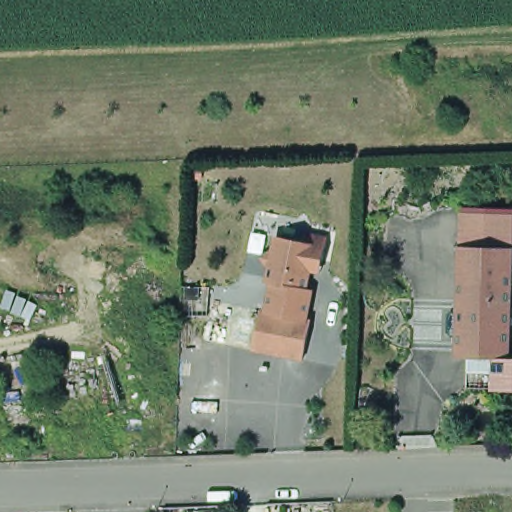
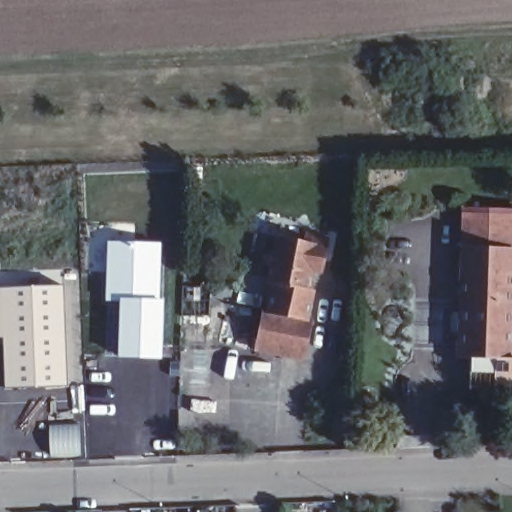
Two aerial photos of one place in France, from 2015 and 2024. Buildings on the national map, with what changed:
unchanged [(469,353),(449,354),(453,217),(512,215),(512,261),(511,261),(508,351),(469,353)]
unchanged [(255,351),(263,306),(266,307),(270,268),(261,256),(274,249),(276,231),(298,235),(300,228),(328,234),(323,274),(311,272),(309,288),(316,290),(308,321),(312,322),(304,361),(255,351)]
new [(163,243),(160,301),(165,302),(162,359),(117,357),(118,301),(105,301),(106,242),(163,243)]
new [(66,387),(4,390),(3,340),(0,340),(0,288),(63,285),(66,387)]
unchanged [(508,351),(512,351),(512,387),(469,388),(469,353),(508,351)]
new [(80,422),(82,456),(49,458),(48,425),(80,422)]

